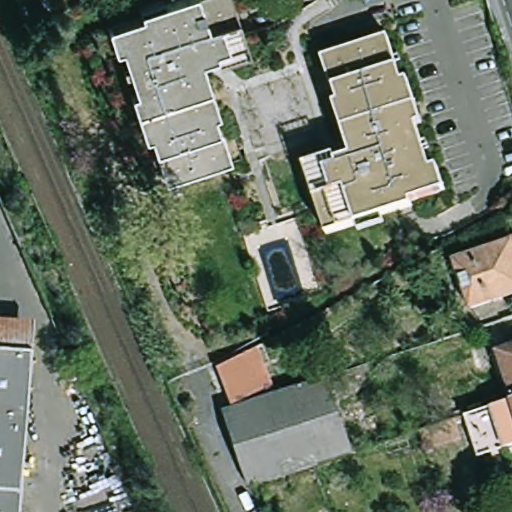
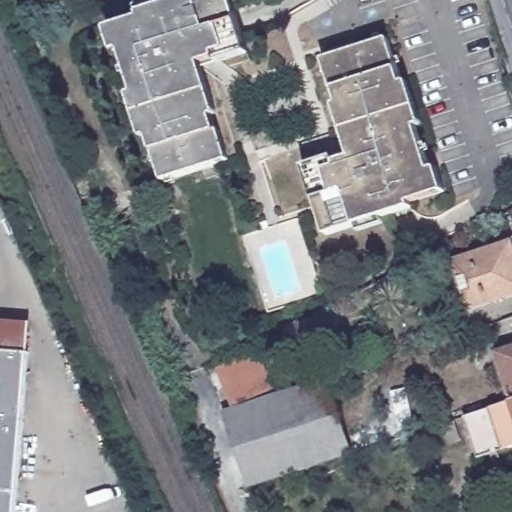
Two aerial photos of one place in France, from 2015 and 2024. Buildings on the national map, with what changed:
unchanged [(225,165),(169,184),(124,53),(115,56),(106,33),(116,29),(142,20),(164,13),(162,8),(185,0),(228,0),(243,45),(246,54),(201,69),(218,120),(213,121),(217,134),(218,137),(225,135),(235,162),(225,165)]
unchanged [(445,194),(435,197),(410,205),(412,209),(326,237),(307,179),(304,169),(349,155),(333,104),(337,102),(332,86),(331,86),(322,59),(332,56),(388,38),(395,58),(403,84),(409,82),(416,105),(423,126),(417,127),(431,171),(437,169),(445,194)]
unchanged [(474,312),(458,264),(512,245),(512,299),(474,312)]
unchanged [(0,353),(0,323),(35,325),(32,356),(0,353)]
unchanged [(280,400),(264,406),(238,415),(221,372),(260,351),(280,400)]
unchanged [(20,512),(0,512),(0,353),(32,356),(20,512)]
unchanged [(500,361),(512,356),(512,399),(500,361)]
unchanged [(238,415),(264,406),(280,400),(304,392),(332,383),(356,458),(258,490),(255,483),(228,418),(238,415)]
unchanged [(483,462),(469,420),(501,410),(512,406),(512,452),(483,462)]

